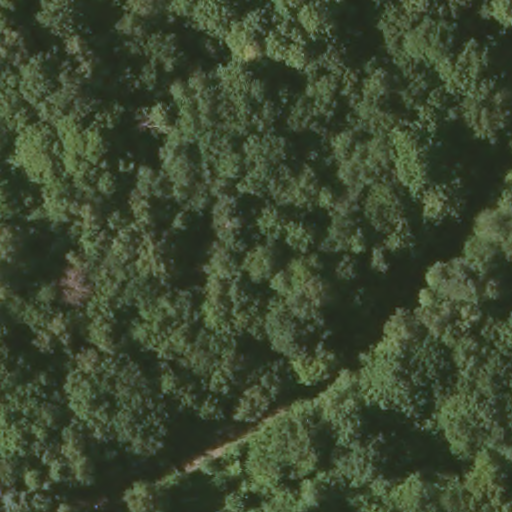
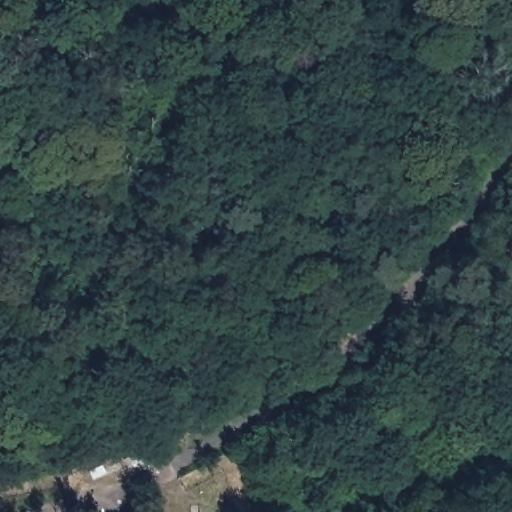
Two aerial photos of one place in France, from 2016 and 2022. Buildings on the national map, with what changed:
unchanged [(131,440),(142,462),(121,472),(112,453),(122,450),(120,445),(131,440)]

